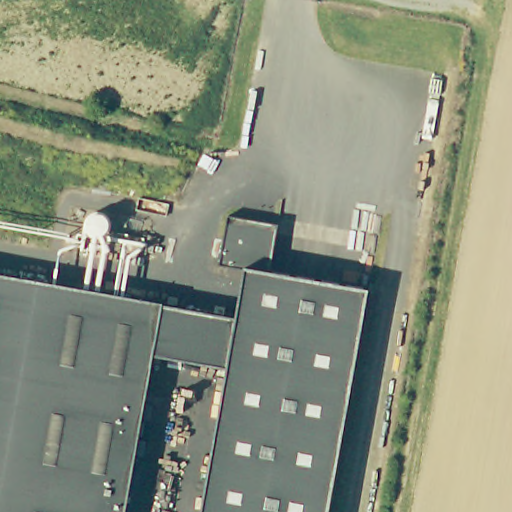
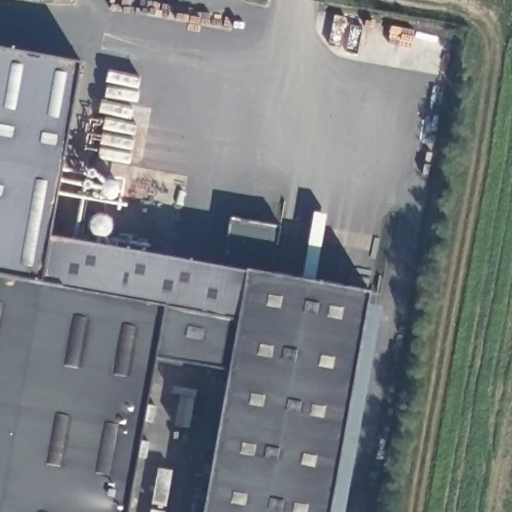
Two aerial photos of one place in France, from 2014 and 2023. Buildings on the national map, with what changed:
new [(247,275),(251,275),(242,322),(228,319),(194,313),(170,309),(10,280),(0,278),(0,47),(79,62),(48,238),(226,271),(237,273),(247,275)]
unchanged [(170,309),(194,313),(228,319),(242,322),(251,275),(247,275),(226,271),(235,220),(268,226),(286,229),(278,278),(296,281),(376,296),(337,512),(0,512),(0,278),(10,280),(170,309)]

